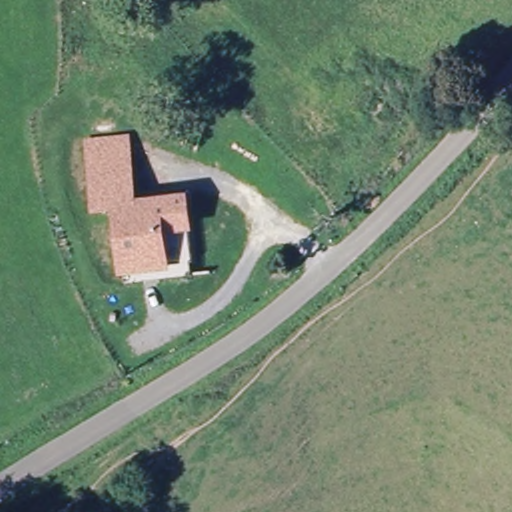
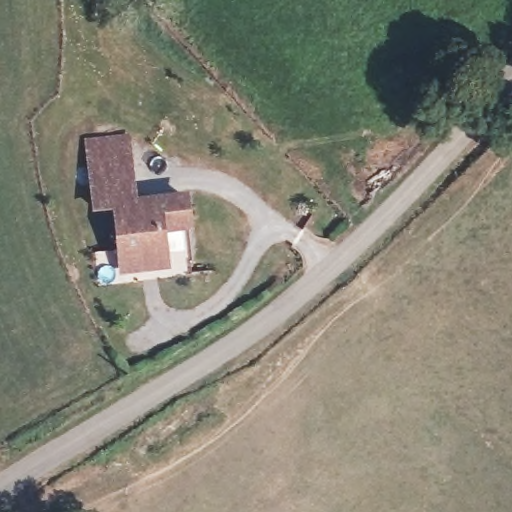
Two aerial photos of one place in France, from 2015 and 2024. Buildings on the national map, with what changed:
unchanged [(213,277),(182,277),(179,261),(126,266),(124,245),(104,246),(100,204),(95,170),(93,146),(90,140),(126,136),(129,164),(134,200),(205,192),(213,277)]
unchanged [(240,304),(254,300),(257,313),(245,319),(240,304)]

